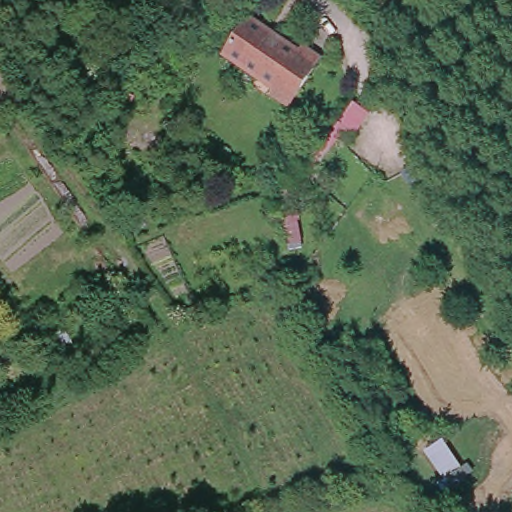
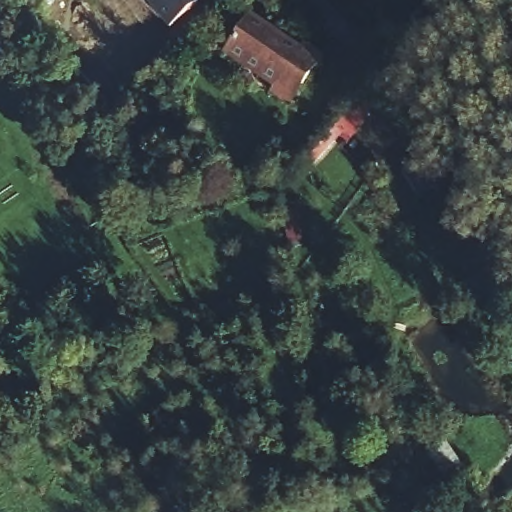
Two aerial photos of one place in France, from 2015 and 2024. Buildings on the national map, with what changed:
new [(144,0),(205,0),(170,30),(144,0)]
unchanged [(278,84),(231,49),(256,16),(301,50),(306,44),(322,56),(290,102),(273,90),(278,84)]

